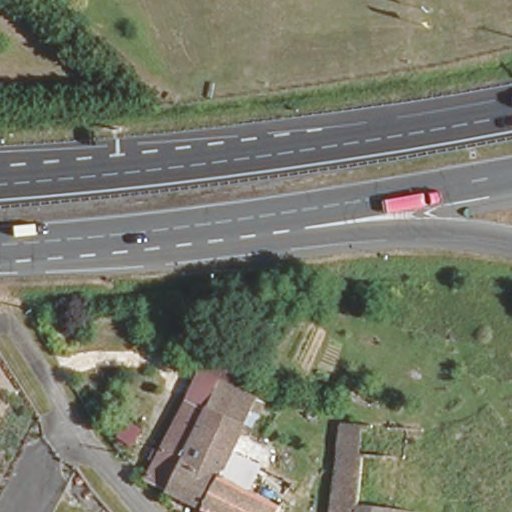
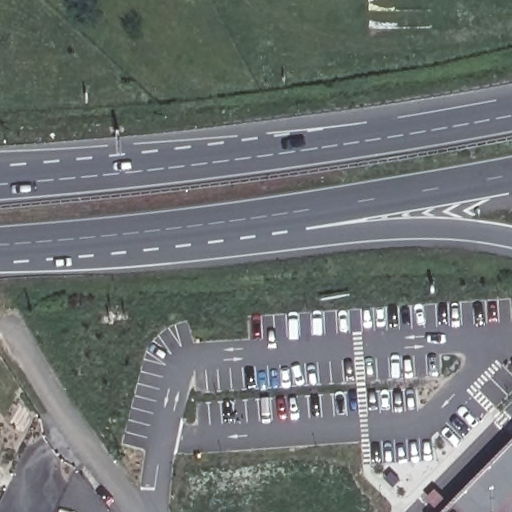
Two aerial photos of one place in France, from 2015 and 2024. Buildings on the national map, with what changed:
demolished [(222,467),(284,500),(276,512),(220,512),(141,473),(196,366),(258,392),(222,467)]
demolished [(358,496),(417,503),(415,512),(325,512),(335,420),(366,419),(358,496)]
new [(512,512),(436,512),(512,441),(512,512)]

